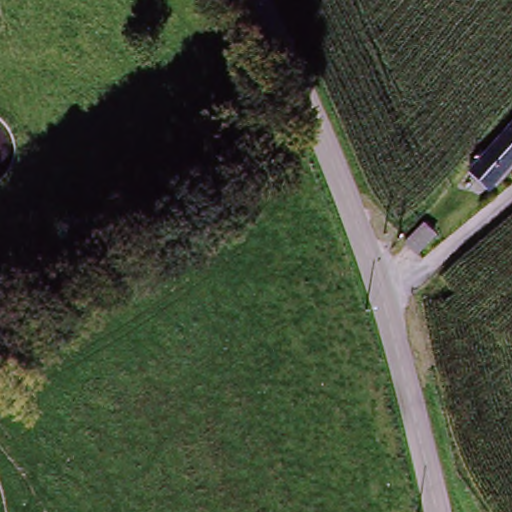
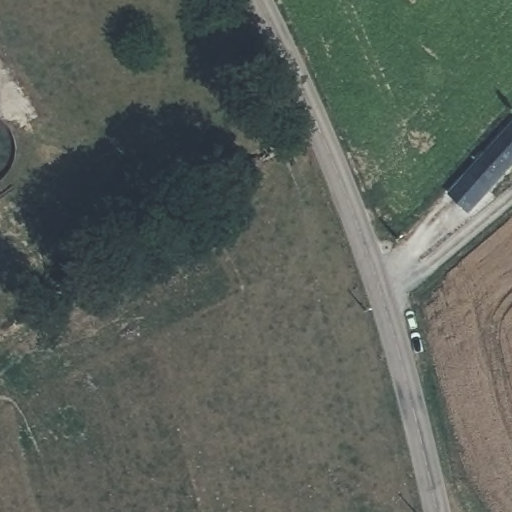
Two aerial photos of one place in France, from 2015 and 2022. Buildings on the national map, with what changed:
unchanged [(478,179),(472,173),(512,131),(512,163),(487,188),(478,179)]

